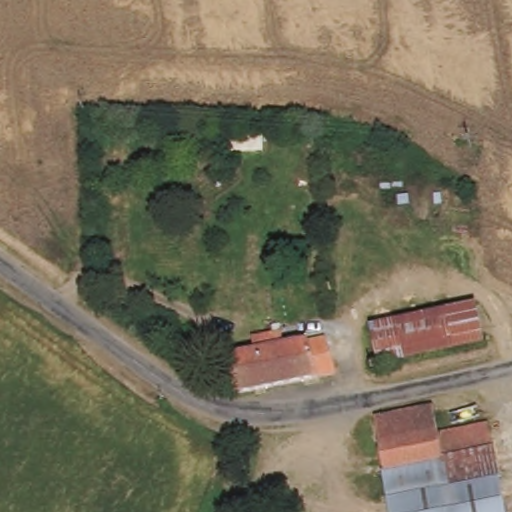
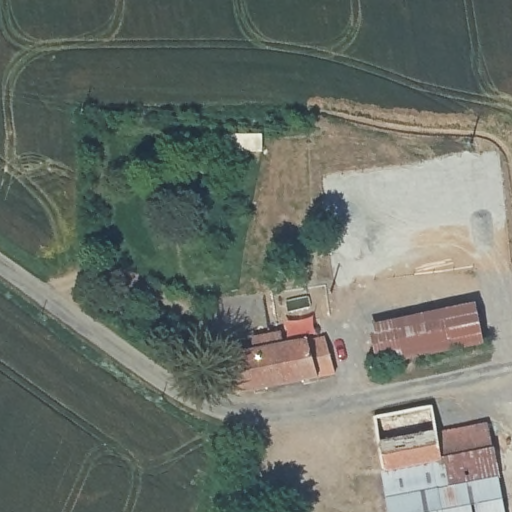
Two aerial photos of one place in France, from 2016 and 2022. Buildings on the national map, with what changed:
unchanged [(372,366),(365,327),(460,309),(467,308),(475,347),(463,349),(372,366)]
unchanged [(327,338),(334,375),(233,391),(229,355),(327,338)]
unchanged [(368,421),(428,410),(433,437),(483,427),(499,512),(385,512),(368,421)]

